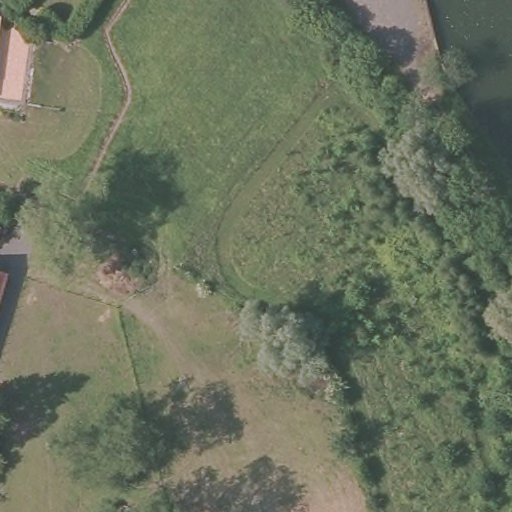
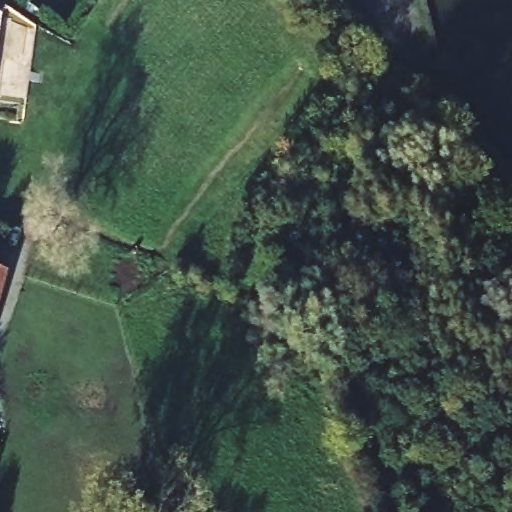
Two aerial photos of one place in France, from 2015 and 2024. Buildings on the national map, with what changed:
unchanged [(0,290),(0,277),(3,278),(0,290)]

